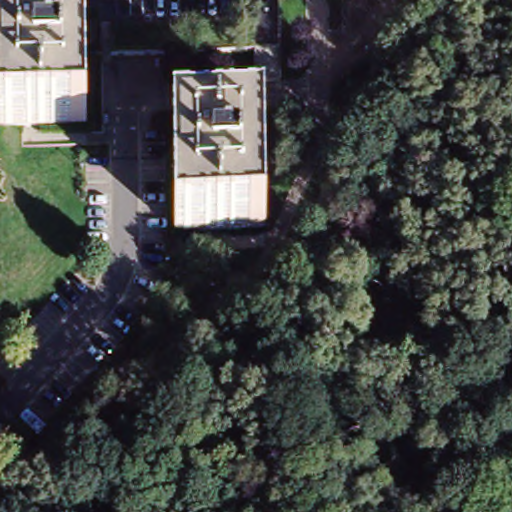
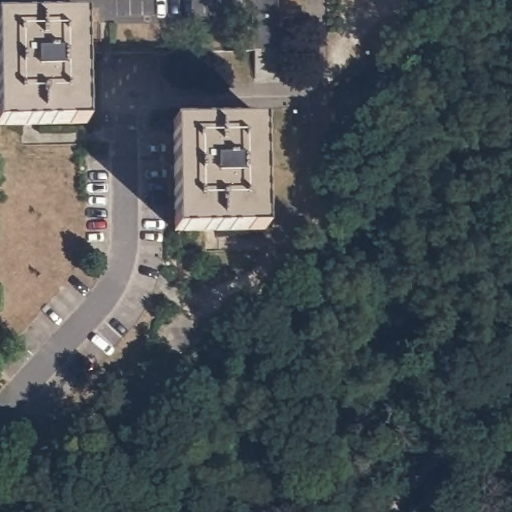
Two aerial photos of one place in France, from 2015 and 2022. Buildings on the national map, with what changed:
unchanged [(82,126),(0,126),(0,17),(81,17),(82,126)]
unchanged [(262,228),(171,230),(169,119),(260,116),(262,228)]

